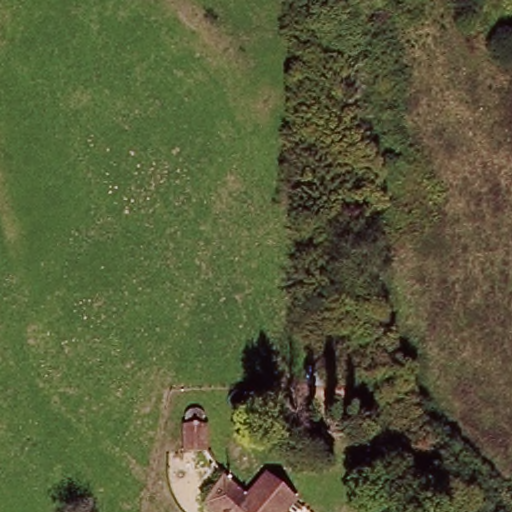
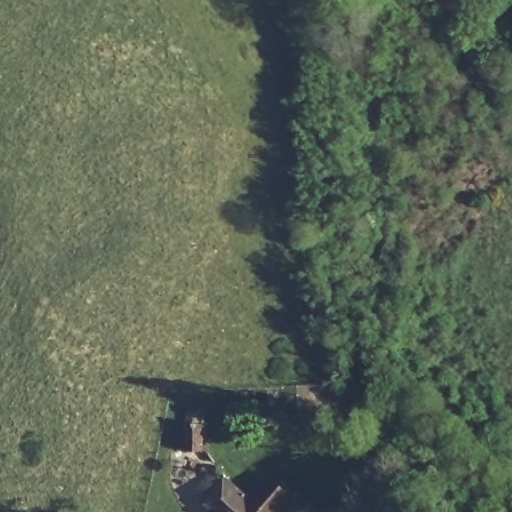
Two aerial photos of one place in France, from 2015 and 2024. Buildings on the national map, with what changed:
unchanged [(185,455),(185,427),(188,426),(189,415),(201,414),(202,426),(207,426),(208,455),(185,455)]
unchanged [(267,472),(302,500),(293,512),(262,512),(246,500),(267,472)]
unchanged [(205,506),(225,482),(246,500),(262,512),(211,512),(205,506)]

